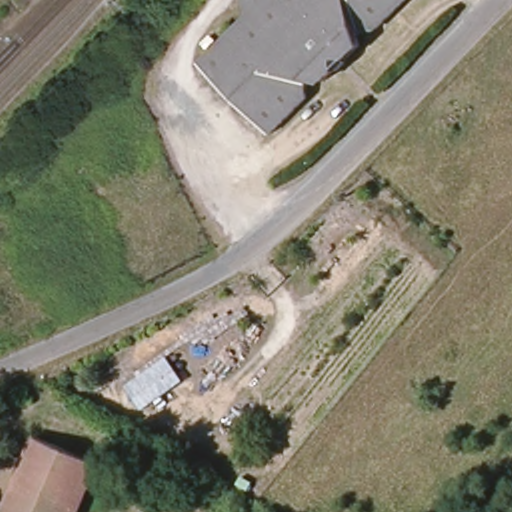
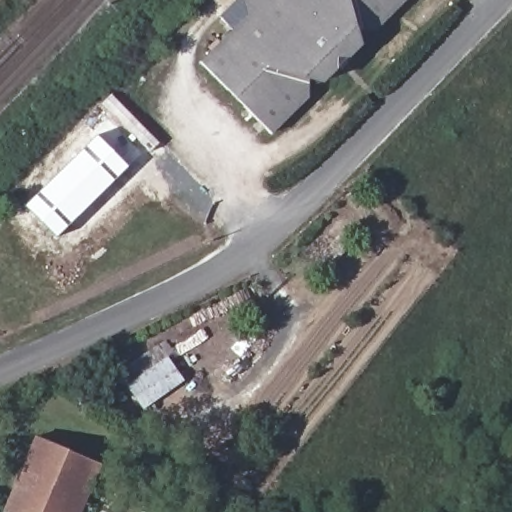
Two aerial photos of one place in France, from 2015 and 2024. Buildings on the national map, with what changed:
unchanged [(333,71),(324,81),(305,81),(306,100),(273,135),(199,65),(246,16),(242,0),(403,0),(379,26),(359,26),(358,45),(348,57),(353,62),(339,75),(333,71)]
new [(129,167),(56,237),(26,206),(98,135),(129,167)]
unchanged [(149,365),(164,385),(122,413),(108,393),(149,365)]
unchanged [(35,438),(98,463),(76,512),(4,512),(35,438)]

